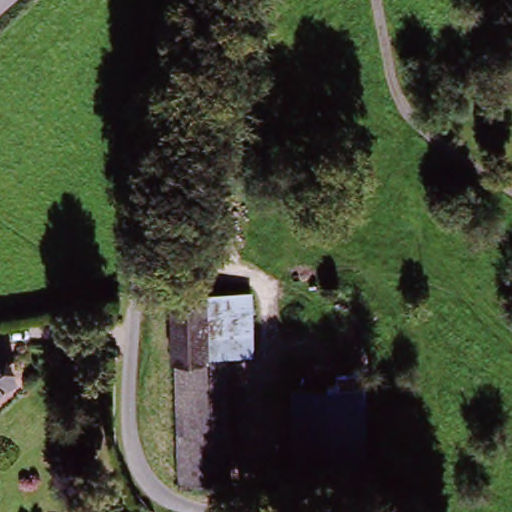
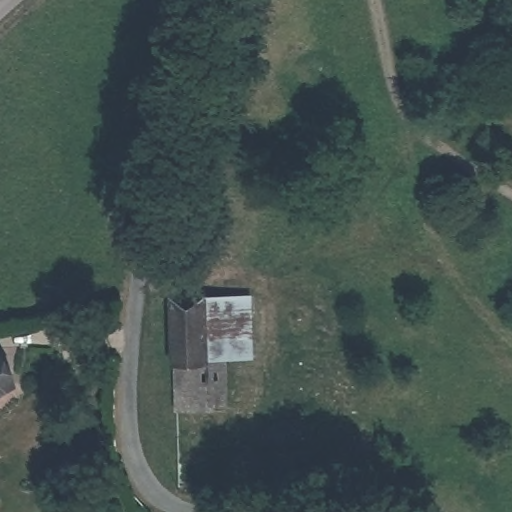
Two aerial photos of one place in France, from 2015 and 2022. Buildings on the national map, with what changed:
unchanged [(171,350),(166,350),(166,295),(193,297),(202,297),(203,362),(204,410),(171,410),(171,350)]
unchanged [(253,296),(256,359),(203,362),(202,297),(253,296)]
unchanged [(25,378),(0,396),(0,350),(25,378)]
unchanged [(355,379),(357,479),(306,480),(304,380),(355,379)]
unchanged [(173,461),(171,410),(204,410),(204,461),(173,461)]

